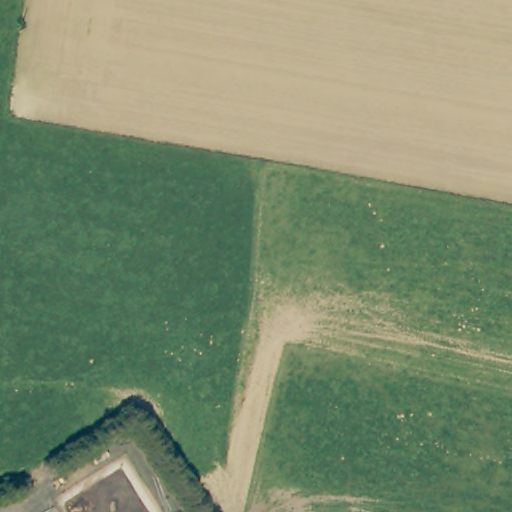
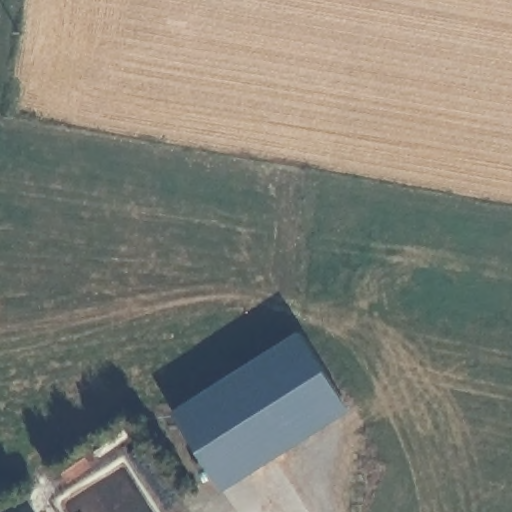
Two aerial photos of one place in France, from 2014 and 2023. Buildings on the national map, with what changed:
new [(302,332),(352,412),(225,493),(175,412),(302,332)]

